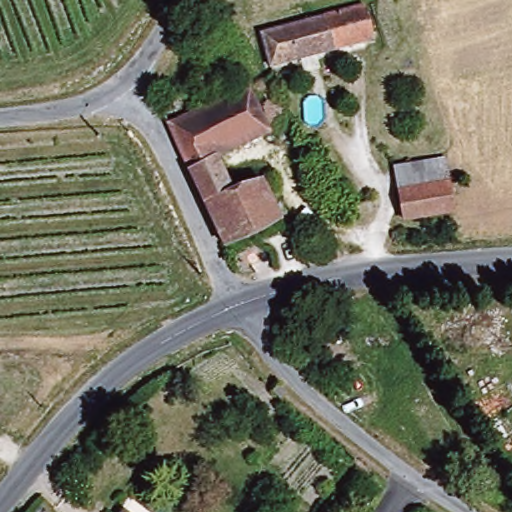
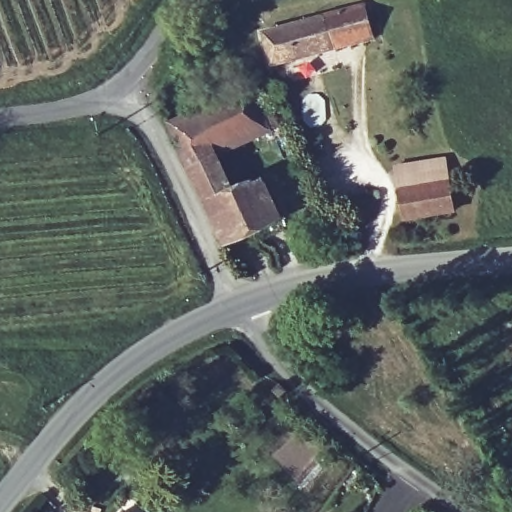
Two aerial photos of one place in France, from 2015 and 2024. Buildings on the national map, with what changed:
unchanged [(367,0),(369,0),(380,38),(277,76),(263,42),(367,0)]
unchanged [(234,68),(243,89),(250,86),(271,78),(289,119),(273,126),(220,148),(237,191),(264,181),(282,226),(226,251),(205,203),(196,182),(187,163),(160,101),(234,68)]
unchanged [(447,174),(453,203),(426,207),(399,210),(396,181),(418,178),(447,174)]
unchanged [(344,376),(326,392),(293,349),(310,335),(344,376)]

